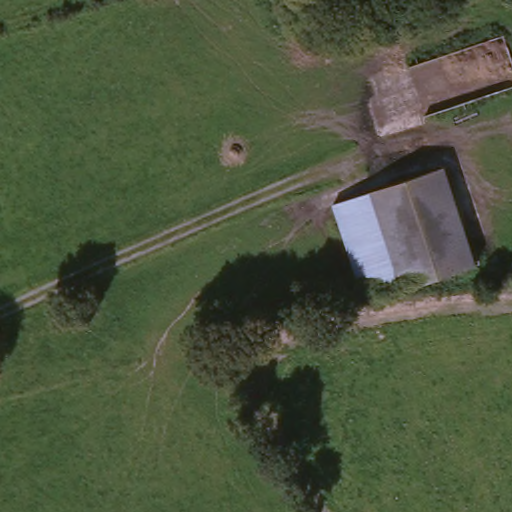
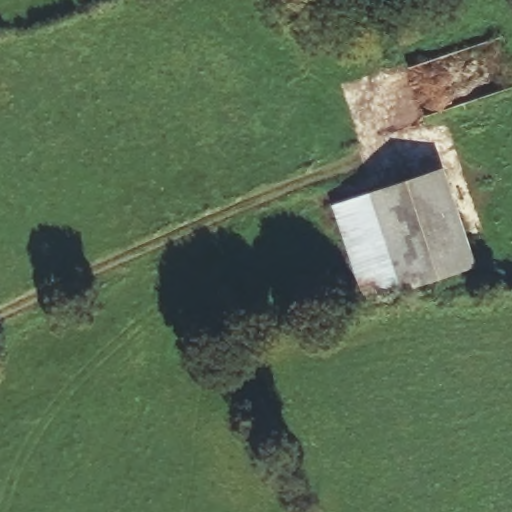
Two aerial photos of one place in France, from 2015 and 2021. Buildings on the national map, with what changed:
unchanged [(360,308),(328,210),(437,174),(469,271),(360,308)]

